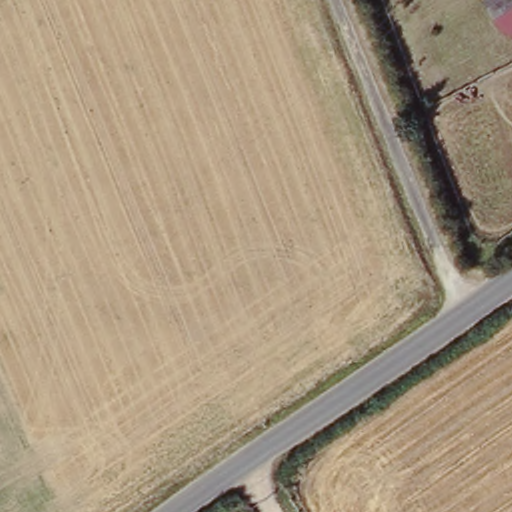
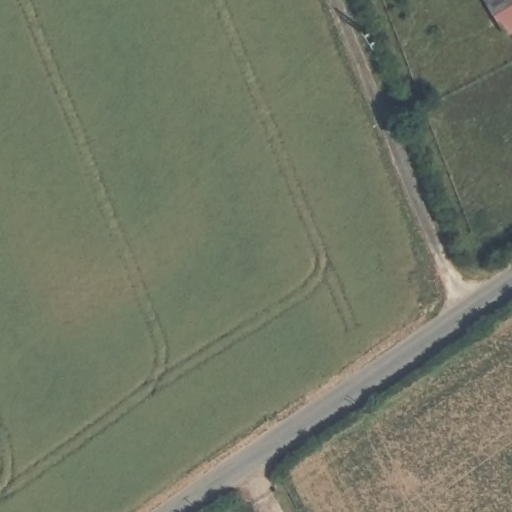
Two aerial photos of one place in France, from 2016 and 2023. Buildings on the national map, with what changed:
unchanged [(481,1),(483,0),(512,0),(512,38),(505,42),(481,1)]

